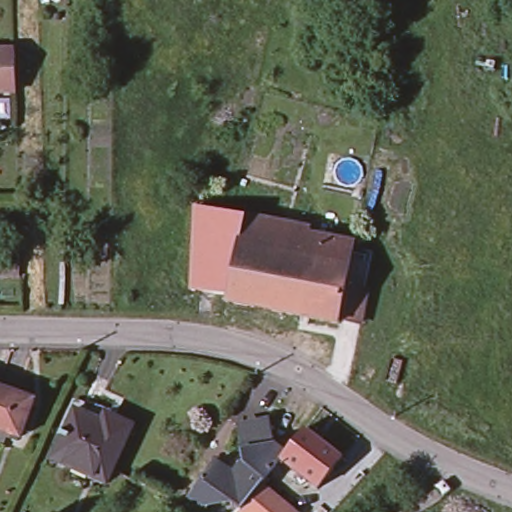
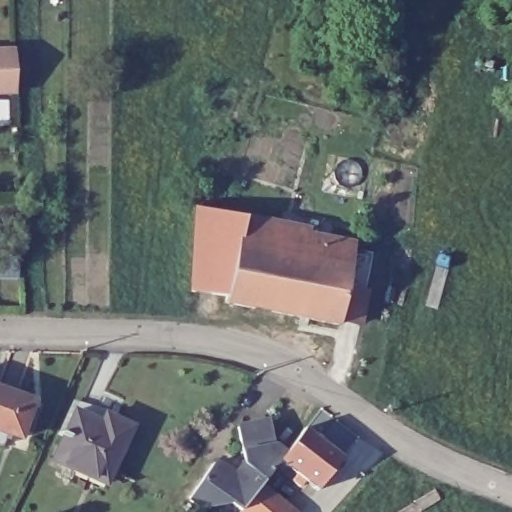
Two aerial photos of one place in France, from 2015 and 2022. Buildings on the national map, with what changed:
unchanged [(5,47),(6,91),(0,91),(0,47),(5,47)]
unchanged [(177,283),(182,201),(217,207),(228,210),(255,215),(249,303),(213,297),(210,296),(211,288),(177,283)]
unchanged [(287,311),(283,310),(249,303),(255,215),(293,222),(288,250),(290,250),(293,251),(287,311)]
unchanged [(325,312),(323,317),(287,311),(290,281),(293,251),(302,252),(307,231),(340,237),(338,247),(348,249),(345,281),(340,316),(325,312)]
unchanged [(350,249),(356,251),(355,258),(357,260),(352,284),(353,284),(345,320),(341,318),(340,316),(346,282),(350,249)]
unchanged [(0,430),(0,387),(27,397),(32,399),(18,436),(12,434),(0,430)]
unchanged [(102,420),(106,412),(108,412),(132,423),(110,472),(77,457),(76,458),(72,466),(71,466),(61,461),(52,457),(75,407),(85,412),(102,420)]
unchanged [(220,472),(221,478),(231,476),(240,466),(233,429),(265,423),(270,447),(280,457),(275,462),(257,487),(238,512),(234,512),(225,505),(197,508),(185,499),(208,465),(220,472)]
unchanged [(337,460),(313,492),(275,462),(280,457),(301,430),(337,460)]
unchanged [(286,512),(238,512),(257,487),(286,512)]

